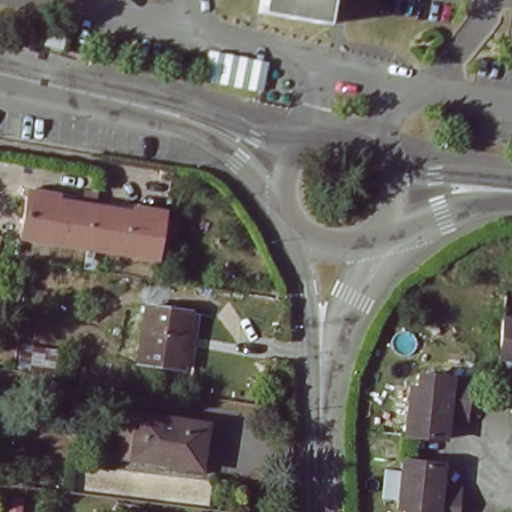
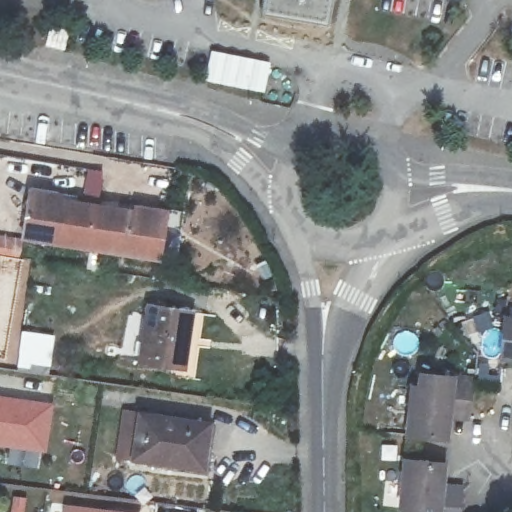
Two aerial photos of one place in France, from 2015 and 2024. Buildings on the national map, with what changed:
unchanged [(321,25),(256,13),(259,0),(325,0),(321,25)]
unchanged [(70,25),(67,45),(48,42),(51,21),(70,25)]
unchanged [(208,75),(212,54),(270,66),(265,89),(208,75)]
unchanged [(19,244),(31,190),(172,207),(166,270),(19,244)]
unchanged [(141,360),(149,301),(185,306),(191,307),(186,342),(183,366),(141,360)]
unchanged [(512,318),(512,358),(499,357),(503,317),(512,318)]
new [(19,369),(22,344),(57,348),(53,374),(19,369)]
unchanged [(448,414),(446,429),(406,426),(411,372),(474,377),(472,408),(448,407),(448,414)]
new [(46,453),(40,452),(38,469),(6,465),(8,448),(0,447),(0,395),(55,402),(46,453)]
unchanged [(203,462),(169,457),(168,463),(133,460),(138,414),(207,422),(203,462)]
unchanged [(438,470),(437,483),(436,492),(460,494),(458,512),(394,512),(399,466),(438,470)]
unchanged [(163,512),(120,512),(120,507),(163,512)]

